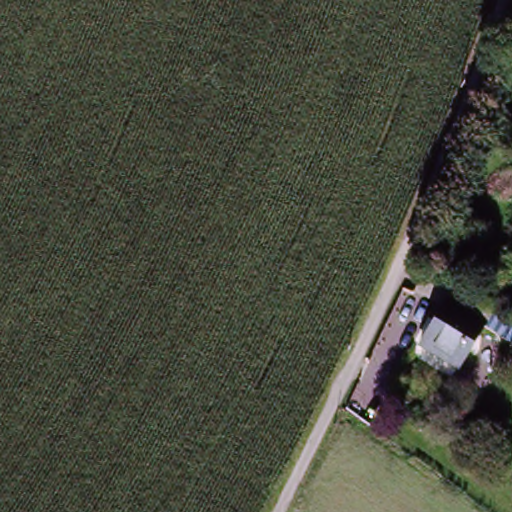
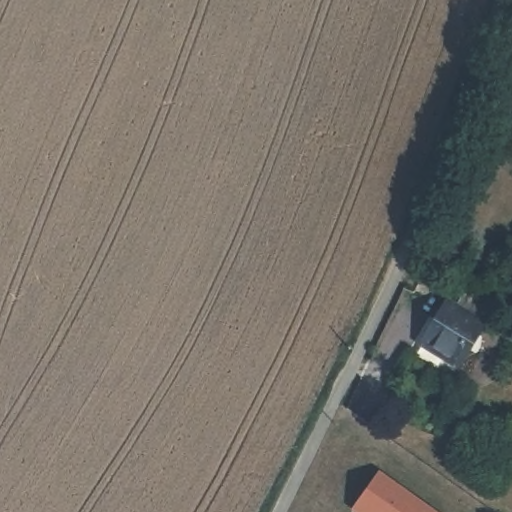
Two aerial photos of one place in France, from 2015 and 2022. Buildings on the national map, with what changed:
unchanged [(512,41),(512,59),(505,56),(512,41)]
unchanged [(476,318),(485,327),(476,344),(462,373),(421,347),(416,343),(446,304),(454,294),(476,318)]
new [(353,511),(379,473),(435,512),(355,512),(353,511)]

